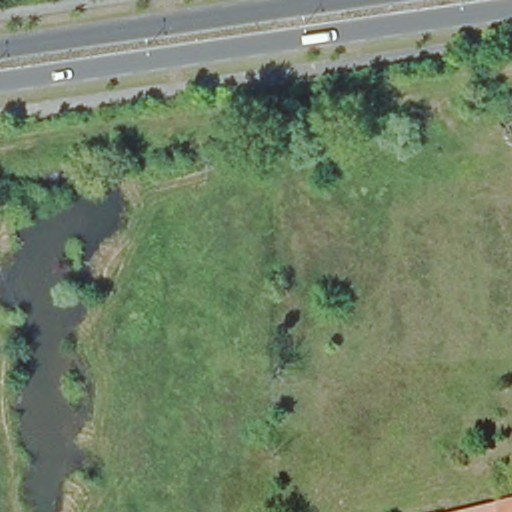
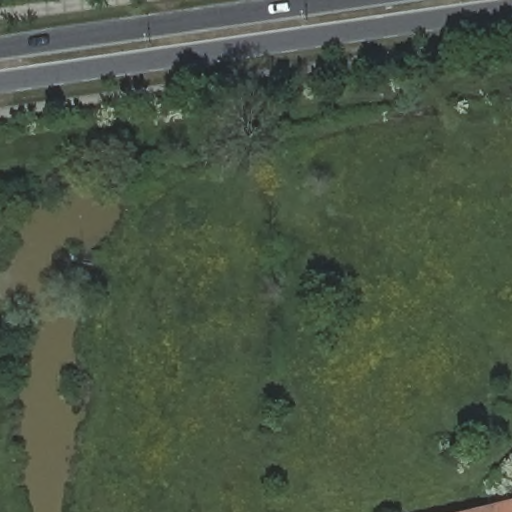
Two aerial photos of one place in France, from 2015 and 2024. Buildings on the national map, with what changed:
unchanged [(512,502),(512,512),(470,512),(512,502)]

